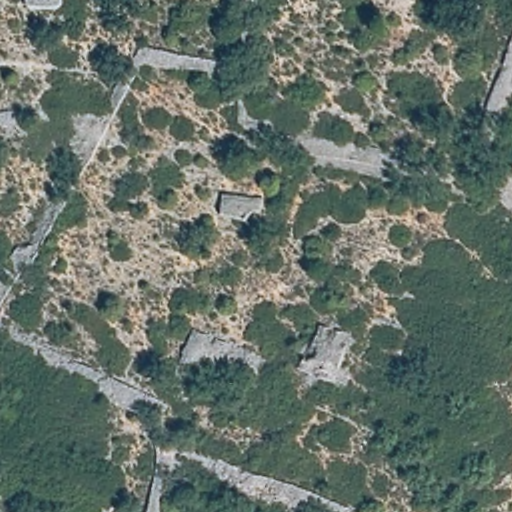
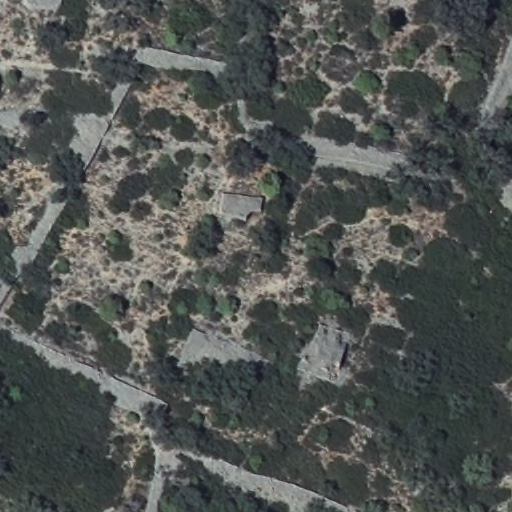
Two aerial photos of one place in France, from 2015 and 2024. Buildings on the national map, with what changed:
unchanged [(247,194),(245,214),(218,212),(220,188),(247,194)]

